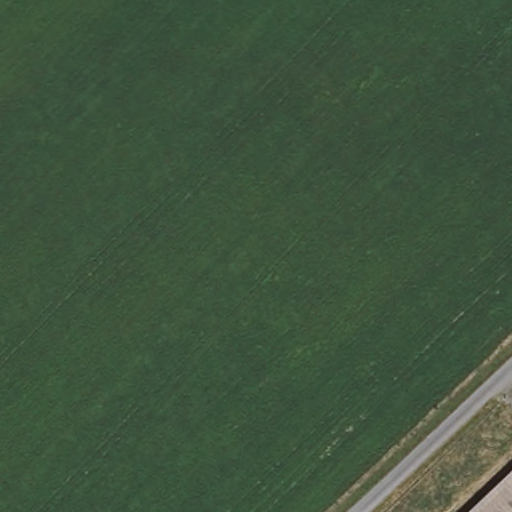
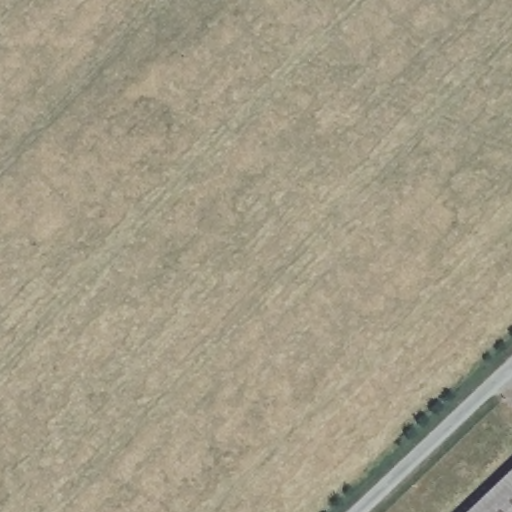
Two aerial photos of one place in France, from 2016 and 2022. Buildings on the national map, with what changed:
unchanged [(512,470),(512,512),(469,512),(512,470)]

